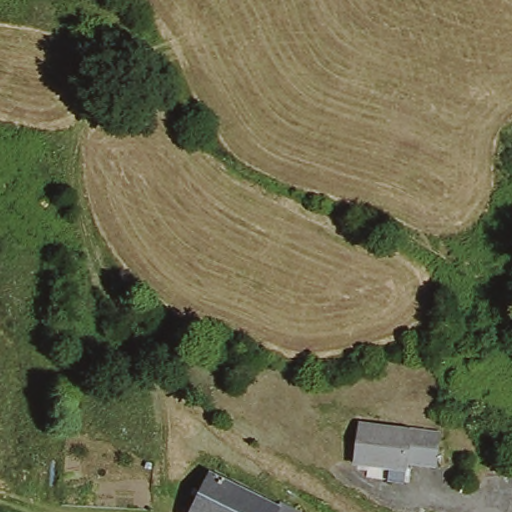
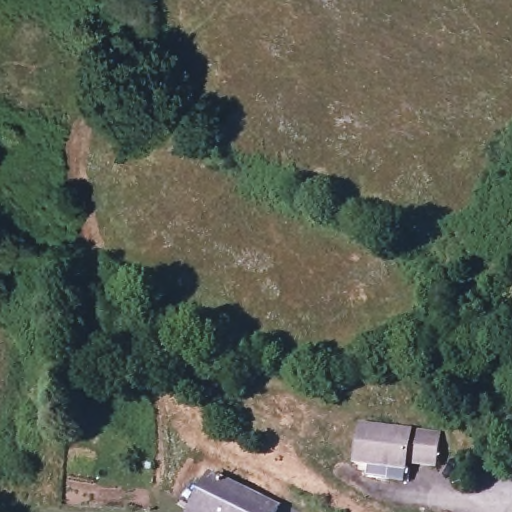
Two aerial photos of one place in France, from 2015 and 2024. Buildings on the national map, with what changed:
unchanged [(359,422),(441,433),(434,471),(406,467),(404,481),(389,478),(390,467),(353,463),(359,422)]
unchanged [(281,507),(279,512),(199,512),(213,478),(281,507)]

